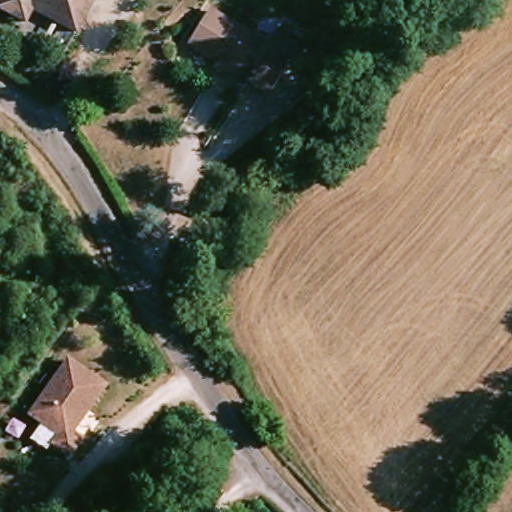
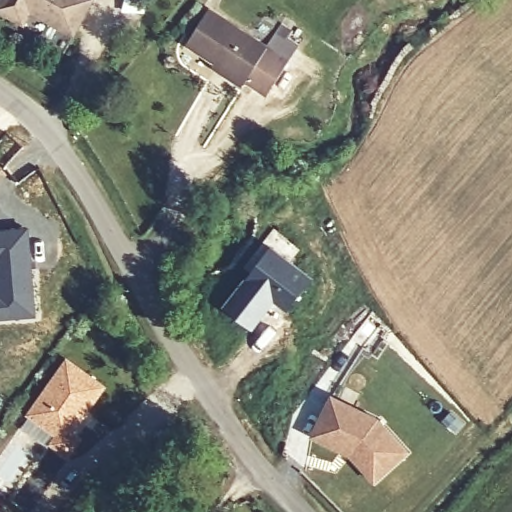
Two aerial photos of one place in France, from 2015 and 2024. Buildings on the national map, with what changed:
unchanged [(87,0),(90,2),(69,36),(26,10),(17,25),(0,15),(0,0),(87,0)]
unchanged [(273,54),(240,91),(212,67),(217,60),(197,41),(222,12),(273,54)]
new [(28,226),(36,316),(0,320),(0,228),(28,226)]
new [(272,247),(314,278),(287,311),(275,303),(252,330),(222,306),(272,247)]
unchanged [(103,389),(72,432),(81,440),(67,459),(48,444),(53,436),(26,416),(65,360),(103,389)]
new [(378,420),(407,452),(375,481),(352,456),(312,438),(332,398),(378,420)]

